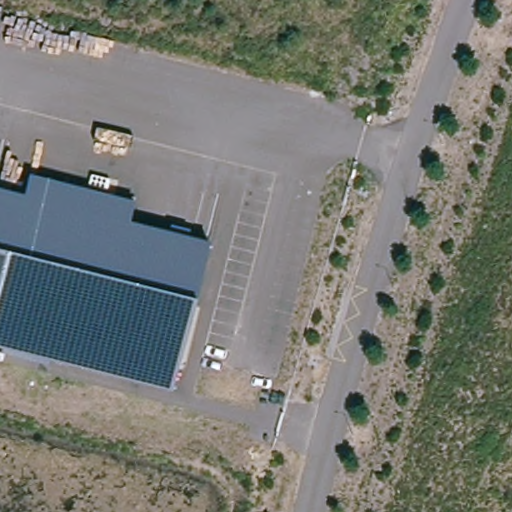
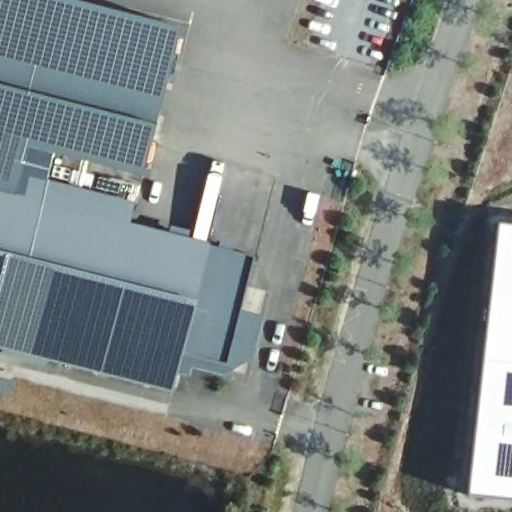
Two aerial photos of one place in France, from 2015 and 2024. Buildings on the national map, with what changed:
new [(79,2),(181,27),(144,174),(55,151),(46,181),(29,176),(23,198),(0,192),(0,0),(80,0),(79,2)]
unchanged [(172,390),(0,346),(0,192),(23,198),(29,176),(115,198),(135,203),(129,225),(209,245),(172,390)]
new [(512,500),(469,495),(498,222),(512,224),(512,500)]
new [(241,308),(264,316),(253,361),(223,377),(194,370),(191,377),(176,373),(182,351),(209,245),(254,257),(241,308)]

